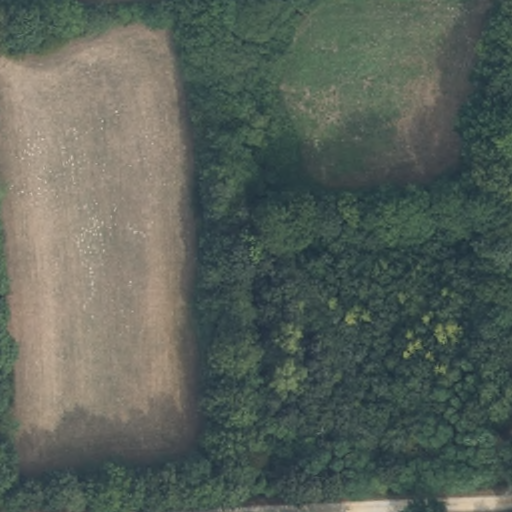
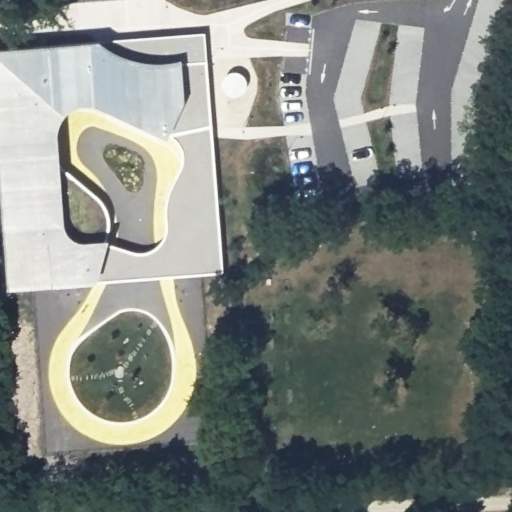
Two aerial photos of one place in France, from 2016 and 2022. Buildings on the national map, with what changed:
new [(8,287),(0,178),(0,47),(101,39),(204,30),(223,271),(99,280),(8,287)]

